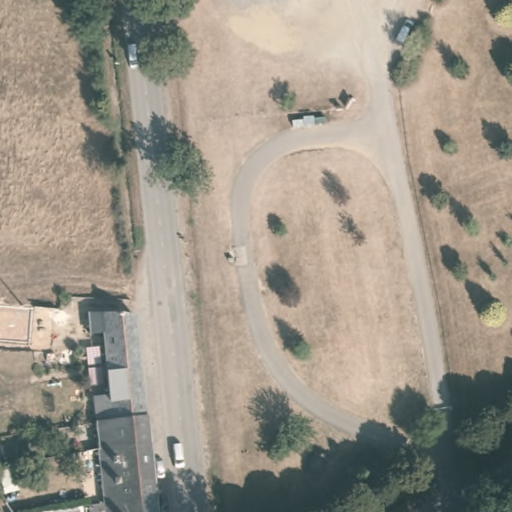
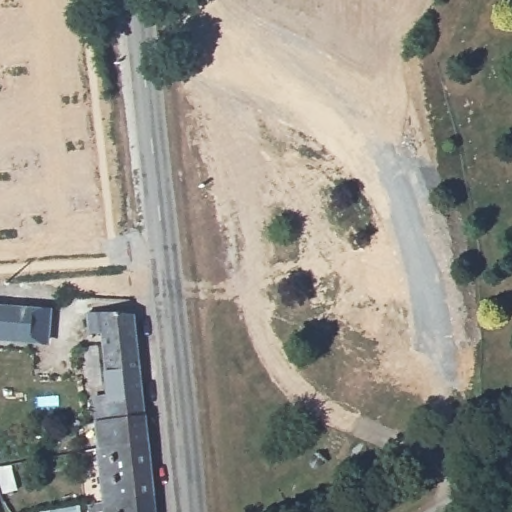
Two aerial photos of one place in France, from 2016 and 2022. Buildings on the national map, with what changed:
new [(0,341),(0,305),(50,308),(47,343),(0,341)]
unchanged [(105,416),(111,416),(103,337),(90,337),(91,317),(134,319),(146,427),(107,431),(105,416)]
unchanged [(146,427),(148,452),(100,458),(97,431),(107,431),(146,427)]
unchanged [(106,509),(100,458),(148,452),(152,502),(106,509)]
unchanged [(4,472),(20,471),(19,505),(0,500),(0,464),(3,463),(4,472)]
unchanged [(106,509),(152,502),(153,512),(106,512),(106,509)]
unchanged [(19,507),(42,503),(42,512),(19,512),(19,507)]
unchanged [(75,507),(75,512),(42,512),(75,507)]

